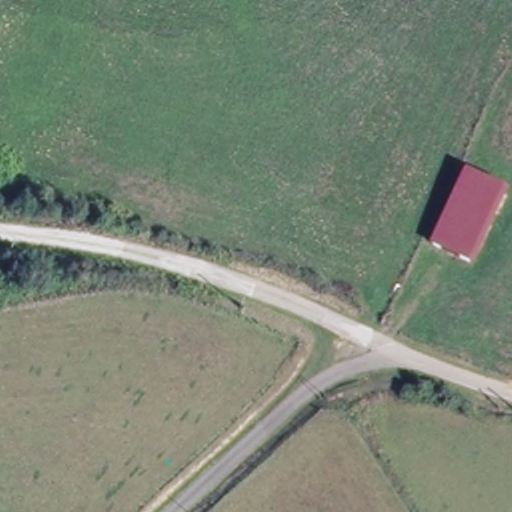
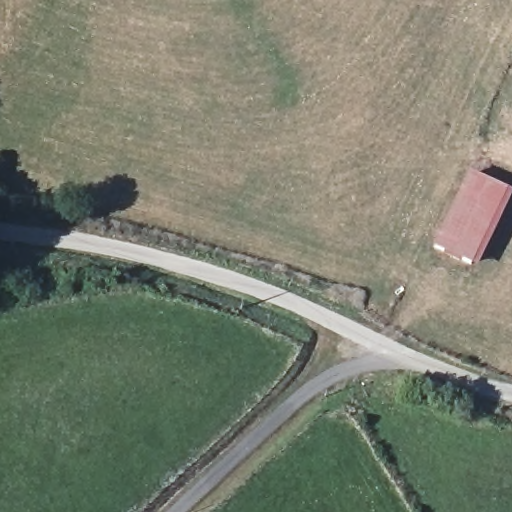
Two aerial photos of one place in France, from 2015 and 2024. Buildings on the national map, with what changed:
unchanged [(501,187),(507,189),(503,196),(475,262),(460,257),(437,247),(470,174),(472,175),(501,187)]

